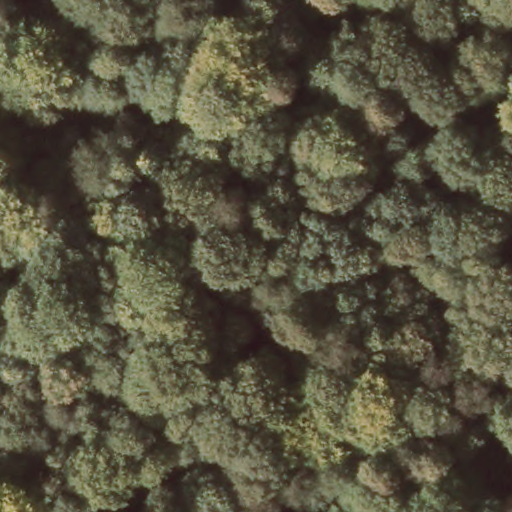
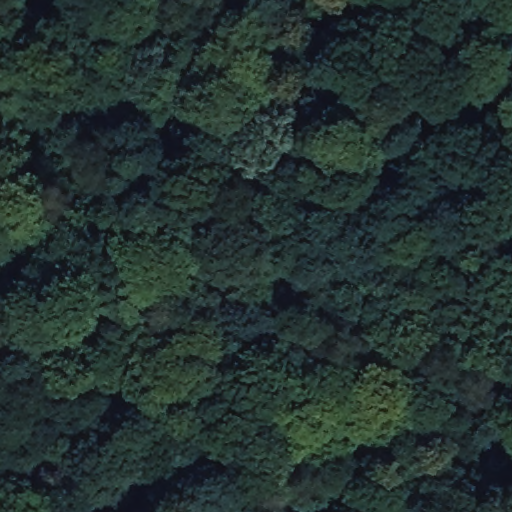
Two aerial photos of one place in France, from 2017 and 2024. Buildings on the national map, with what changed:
[]

